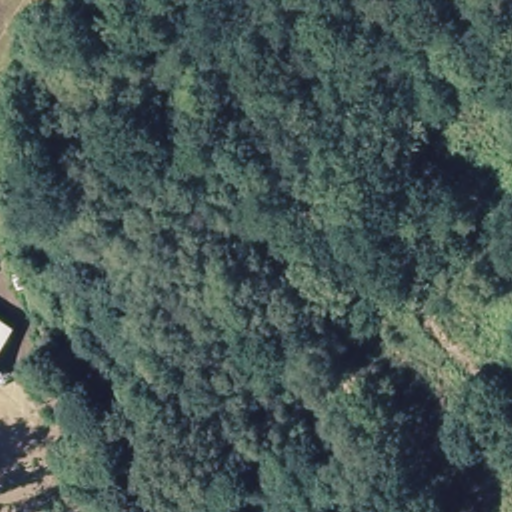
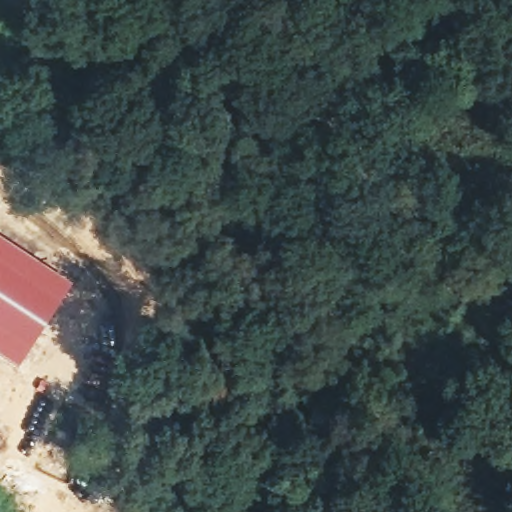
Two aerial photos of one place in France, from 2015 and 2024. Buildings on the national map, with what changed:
new [(18,365),(4,356),(19,331),(0,319),(0,237),(72,283),(18,365)]
unchanged [(0,319),(19,331),(4,356),(0,353),(0,319)]
unchanged [(0,363),(0,353),(4,356),(0,363)]

